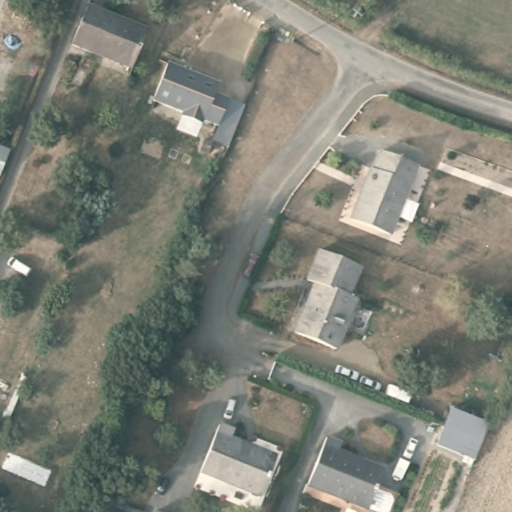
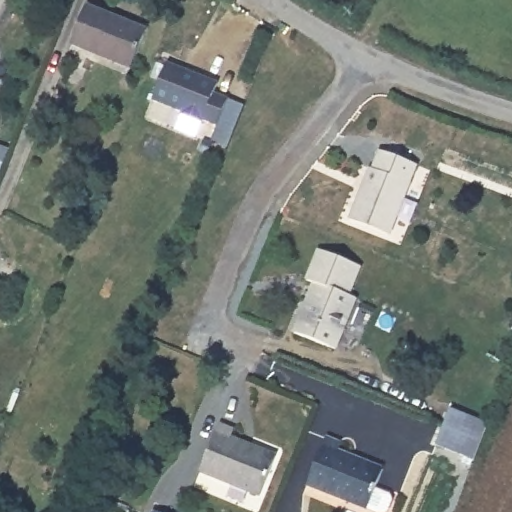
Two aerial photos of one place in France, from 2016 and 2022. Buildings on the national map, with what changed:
unchanged [(71,40),(86,3),(146,27),(130,66),(71,40)]
unchanged [(201,119),(197,122),(181,116),(182,112),(152,100),(166,62),(215,82),(214,92),(227,97),(216,126),(201,119)]
unchanged [(0,175),(0,145),(12,150),(2,175),(0,175)]
unchanged [(352,215),(370,168),(375,170),(382,148),(419,164),(392,230),(352,215)]
unchanged [(295,328),(313,277),(308,275),(320,247),(359,262),(348,289),(356,292),(336,345),(295,328)]
unchanged [(431,448),(437,430),(445,411),(485,424),(476,445),(469,461),(431,448)]
unchanged [(197,466),(216,420),(232,427),(230,434),(275,453),(259,493),(197,466)]
unchanged [(326,433),(342,440),(340,445),(384,465),(373,488),(387,494),(390,500),(385,511),(383,512),(376,512),(365,507),(306,481),(326,433)]
unchanged [(149,512),(151,506),(165,512),(149,512)]

